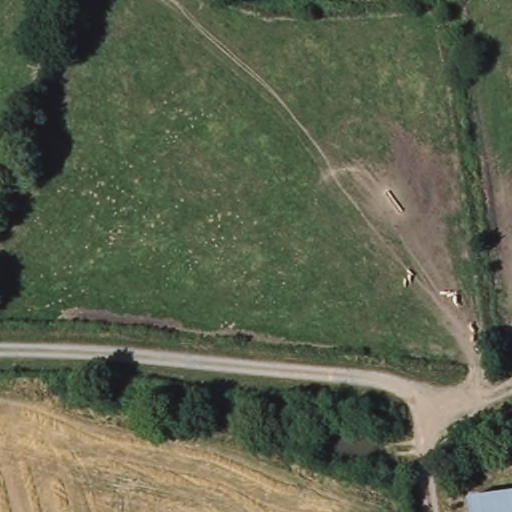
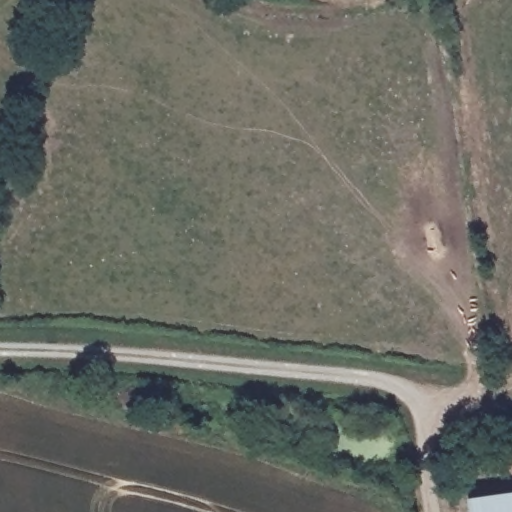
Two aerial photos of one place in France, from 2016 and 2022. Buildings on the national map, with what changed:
unchanged [(468,497),(512,491),(512,512),(470,512),(468,497)]

